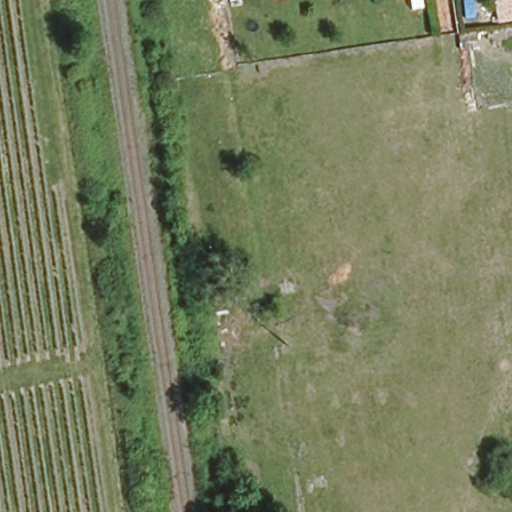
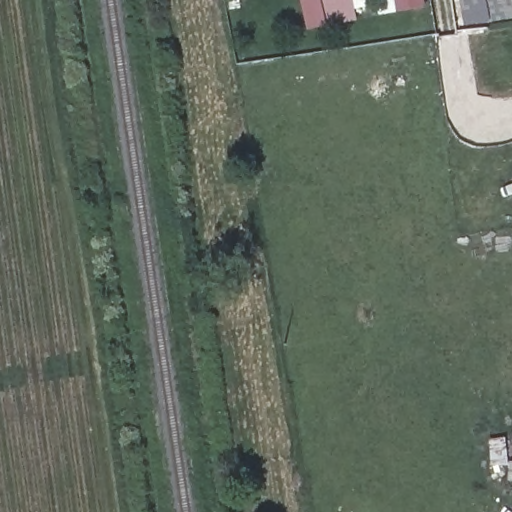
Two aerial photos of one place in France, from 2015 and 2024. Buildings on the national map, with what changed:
new [(357,19),(307,30),(301,0),(353,0),(357,19)]
new [(386,0),(425,0),(426,6),(388,14),(386,0)]
unchanged [(467,0),(512,0),(512,17),(471,23),(467,0)]

